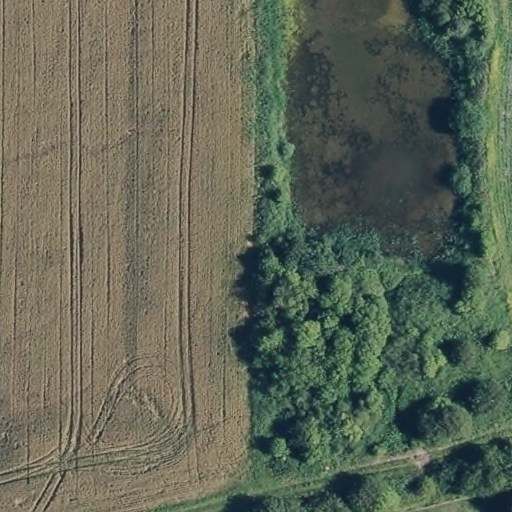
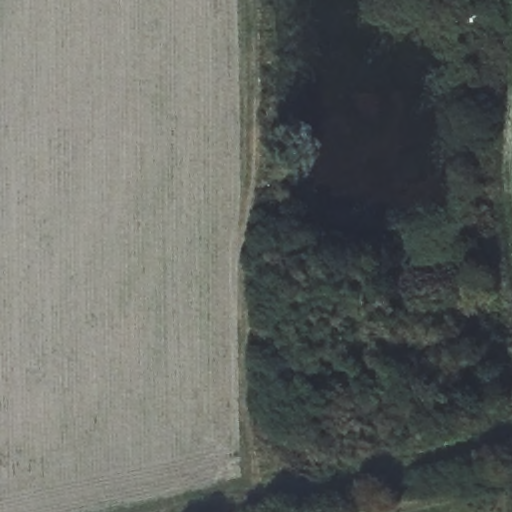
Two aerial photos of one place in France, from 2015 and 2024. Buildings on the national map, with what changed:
unchanged [(448,12),(474,8),(478,26),(451,30),(448,12)]

